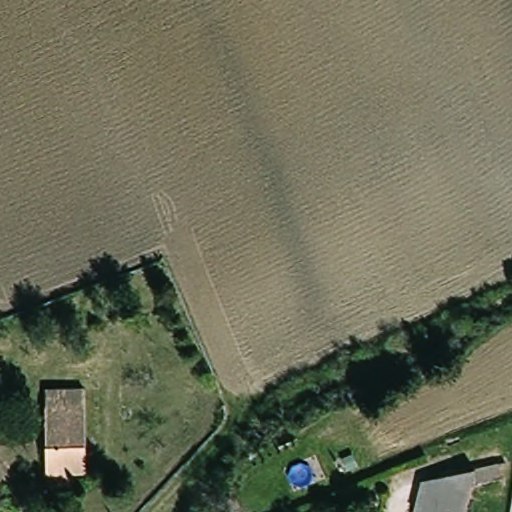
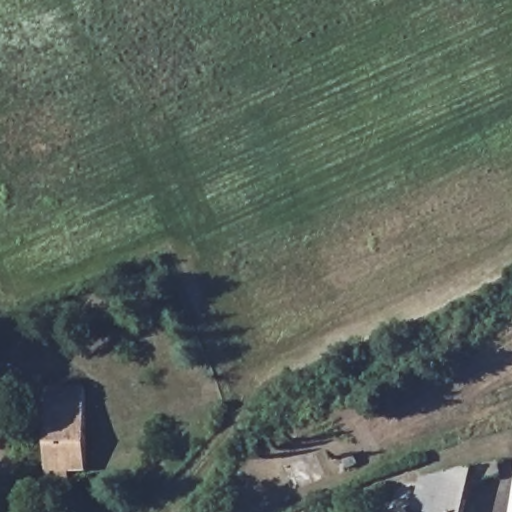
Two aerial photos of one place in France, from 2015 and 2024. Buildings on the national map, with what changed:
unchanged [(43,473),(43,461),(43,398),(82,399),(83,462),(64,462),(65,474),(43,473)]
unchanged [(432,476),(510,462),(512,474),(512,477),(467,487),(464,506),(463,512),(404,512),(409,481),(432,476)]

